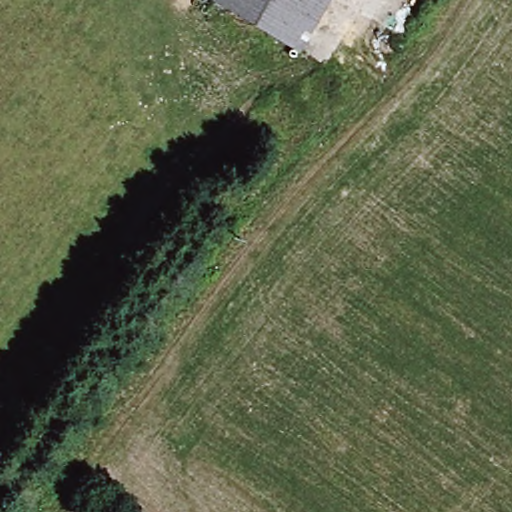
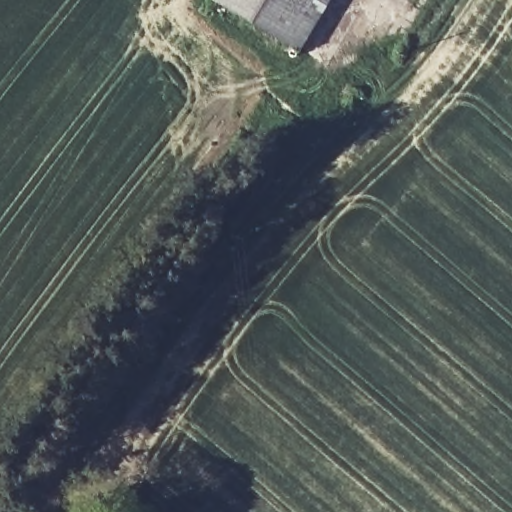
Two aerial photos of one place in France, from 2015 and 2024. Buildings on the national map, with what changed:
unchanged [(290,50),(216,0),(324,0),(290,50)]

